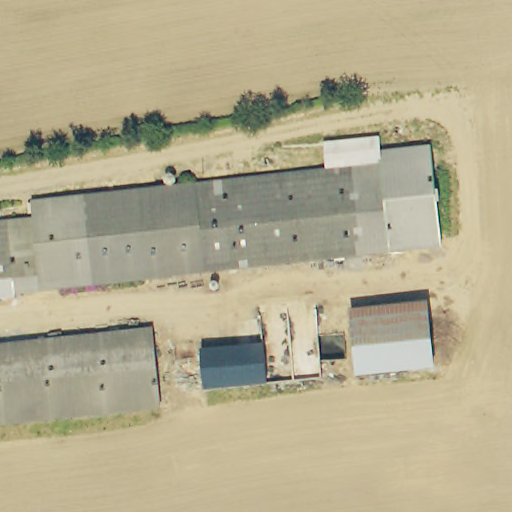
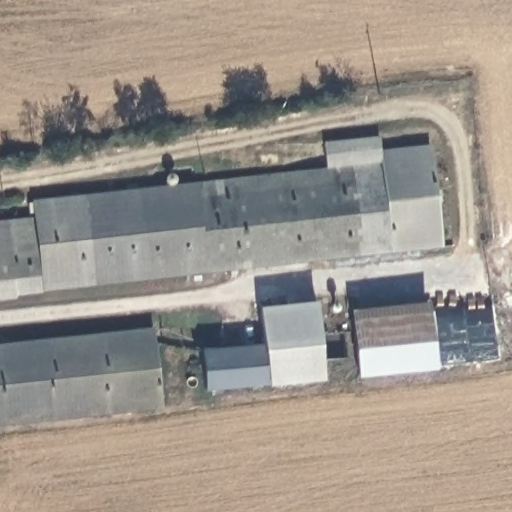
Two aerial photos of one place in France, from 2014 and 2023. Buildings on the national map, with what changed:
unchanged [(387,162),(326,169),(322,142),(380,137),(382,151),(430,146),(442,246),(396,251),(387,162)]
unchanged [(38,218),(36,201),(387,162),(396,251),(46,289),(44,276),(0,280),(0,222),(38,218)]
new [(44,276),(46,289),(40,290),(41,294),(15,296),(16,299),(0,300),(0,280),(44,276)]
new [(260,307),(317,300),(324,380),(269,385),(263,344),(260,307)]
unchanged [(435,360),(358,368),(353,314),(430,306),(435,360)]
unchanged [(0,424),(0,346),(157,329),(166,406),(0,424)]
unchanged [(200,349),(263,344),(269,385),(205,391),(200,349)]

